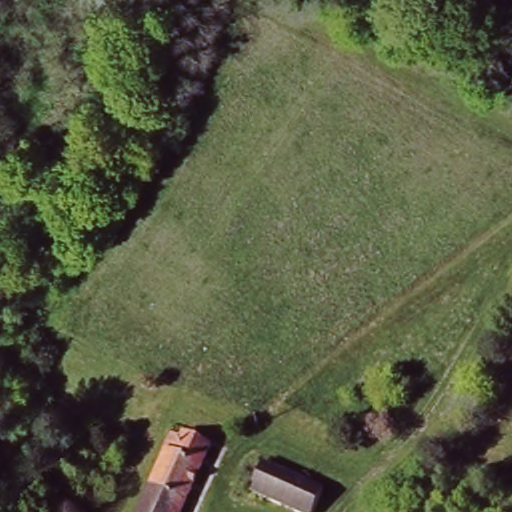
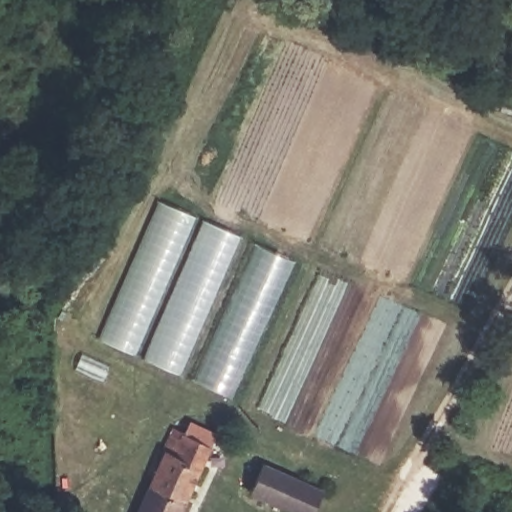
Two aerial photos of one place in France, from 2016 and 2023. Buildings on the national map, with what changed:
new [(157,199),(293,259),(231,398),(96,338),(157,199)]
unchanged [(183,512),(136,512),(177,431),(216,458),(183,512)]
unchanged [(291,512),(250,490),(267,460),(332,495),(324,512),(291,512)]

